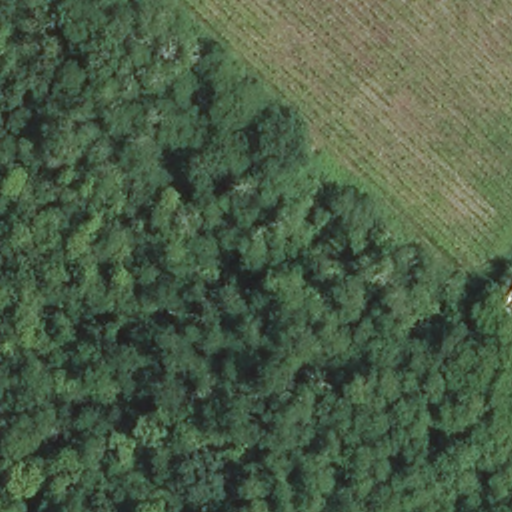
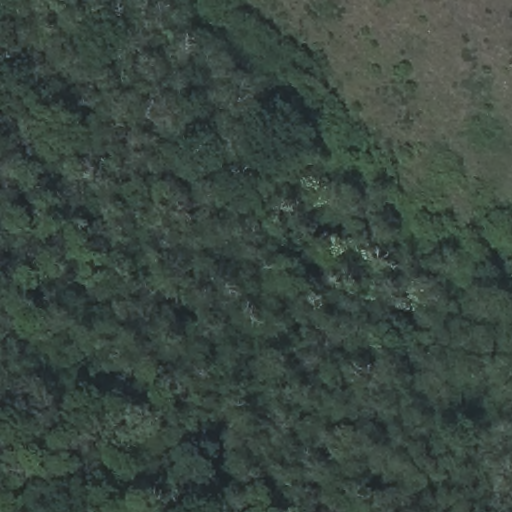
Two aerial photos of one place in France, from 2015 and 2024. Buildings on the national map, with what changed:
unchanged [(496,300),(512,279),(512,312),(496,300)]

